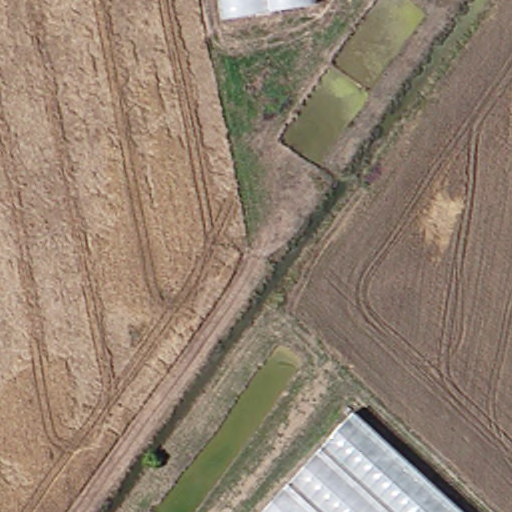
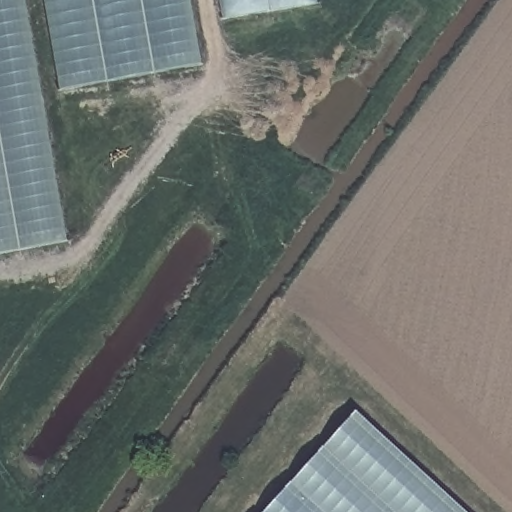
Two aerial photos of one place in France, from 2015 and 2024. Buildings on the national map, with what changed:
new [(0,250),(0,0),(30,0),(72,237),(0,250)]
new [(60,92),(44,0),(195,0),(207,67),(60,92)]
unchanged [(230,18),(227,0),(317,0),(318,6),(230,18)]
unchanged [(264,512),(356,411),(466,512),(264,512)]

